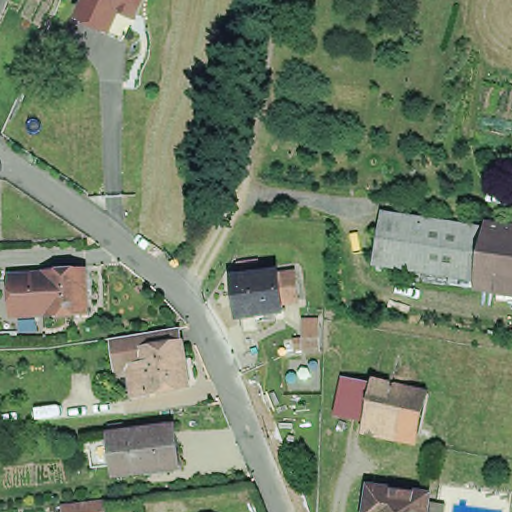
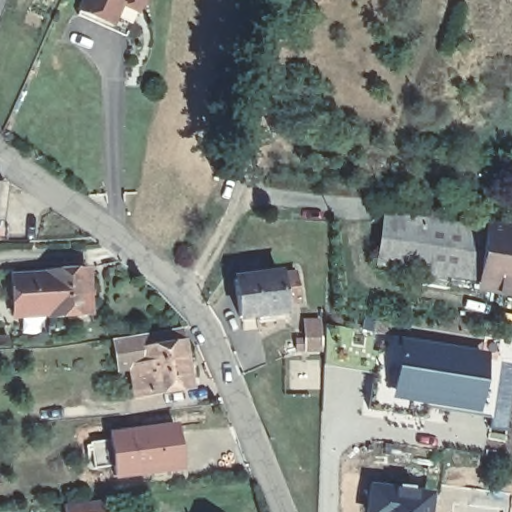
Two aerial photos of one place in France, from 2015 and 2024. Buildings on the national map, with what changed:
unchanged [(127,9),(116,33),(78,13),(84,0),(148,0),(141,16),(127,9)]
unchanged [(477,279),(485,229),(485,223),(498,225),(500,210),(512,212),(512,284),(511,293),(497,291),(498,282),(477,279)]
unchanged [(412,269),(379,264),(385,219),(397,220),(398,216),(485,229),(477,279),(422,271),(421,275),(411,273),(412,269)]
unchanged [(34,308),(33,272),(51,272),(51,269),(56,269),(95,267),(96,313),(58,315),(54,315),(53,307),(34,308)]
unchanged [(233,278),(279,271),(280,274),(295,272),(299,296),(283,298),(285,307),(239,314),(233,278)]
unchanged [(512,284),(512,293),(511,293),(512,284)]
unchanged [(306,355),(306,320),(330,320),(330,355),(306,355)]
unchanged [(149,396),(135,399),(130,370),(116,372),(115,362),(111,340),(179,330),(181,345),(188,390),(149,396)]
new [(488,355),(482,416),(391,403),(401,338),(488,355)]
demolished [(426,392),(418,442),(329,423),(347,373),(426,392)]
unchanged [(108,435),(174,427),(176,443),(111,452),(108,435)]
unchanged [(176,443),(180,468),(114,476),(111,452),(176,443)]
unchanged [(434,498),(432,512),(374,512),(377,490),(434,498)]
unchanged [(70,503),(111,498),(113,512),(71,512),(70,503)]

